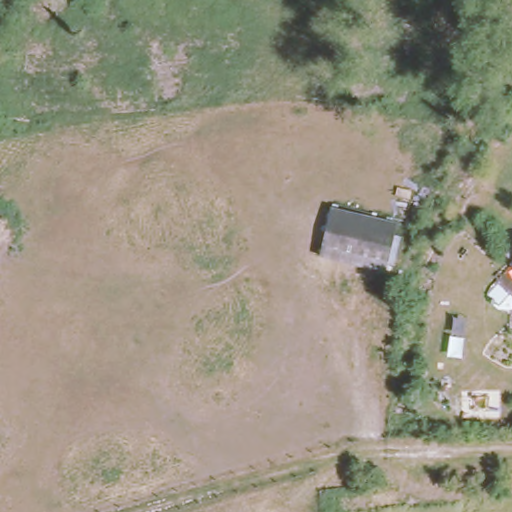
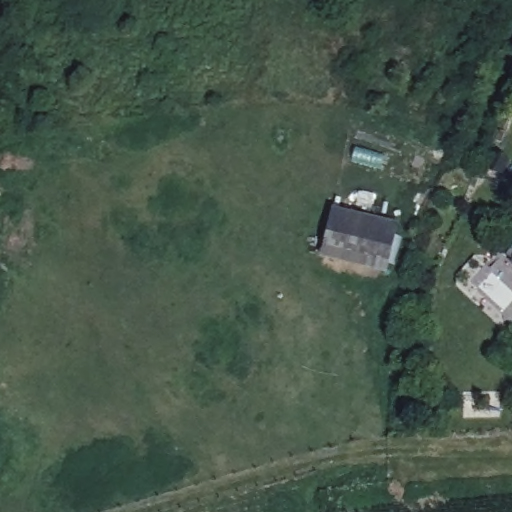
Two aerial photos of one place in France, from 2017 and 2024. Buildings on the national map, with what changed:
unchanged [(331,208),(396,224),(385,273),(319,257),(331,208)]

